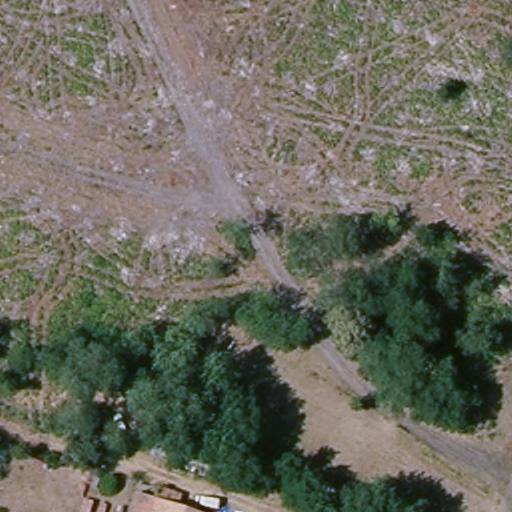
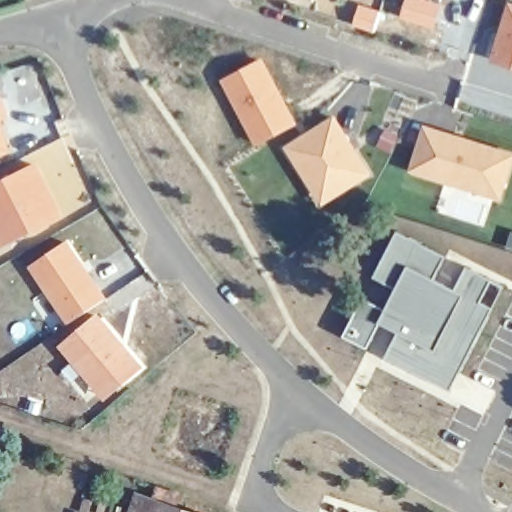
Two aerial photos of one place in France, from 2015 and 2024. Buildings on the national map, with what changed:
new [(512,3),(512,69),(491,63),(510,2),(512,3)]
new [(299,124),(255,147),(221,80),(264,57),(299,124)]
new [(1,121),(11,152),(0,156),(0,96),(3,95),(11,117),(1,121)]
new [(373,176),(322,207),(284,147),(335,116),(373,176)]
new [(512,152),(512,172),(503,201),(409,172),(424,125),(512,152)]
new [(1,249),(0,247),(0,181),(38,161),(66,215),(1,249)]
new [(447,256),(436,278),(457,289),(468,267),(493,281),(481,303),(494,309),(453,391),(386,358),(400,331),(381,322),(367,347),(342,338),(363,297),(386,308),(395,288),(374,278),(398,232),(447,256)]
new [(108,297),(69,325),(28,268),(69,239),(108,297)]
new [(144,367),(106,402),(58,347),(99,313),(144,367)]
unchanged [(149,512),(152,502),(181,512),(149,512)]

